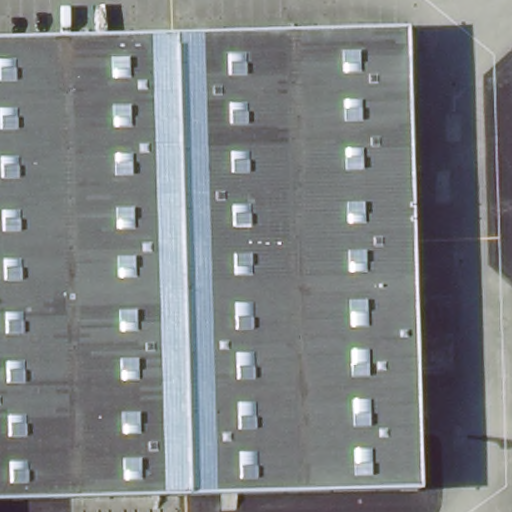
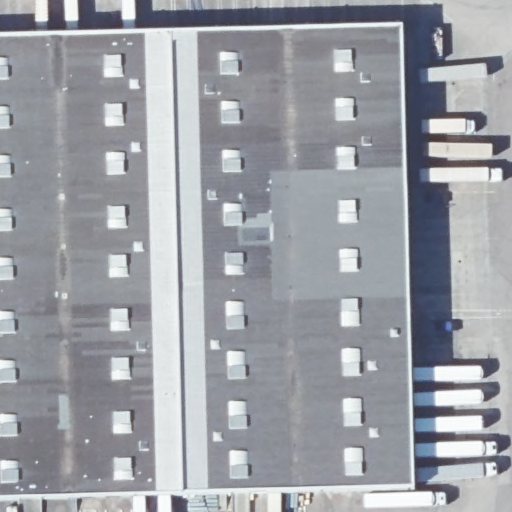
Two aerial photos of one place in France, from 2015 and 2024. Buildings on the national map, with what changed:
unchanged [(57,36),(57,48),(403,40),(413,488),(0,499),(0,38),(57,36)]

